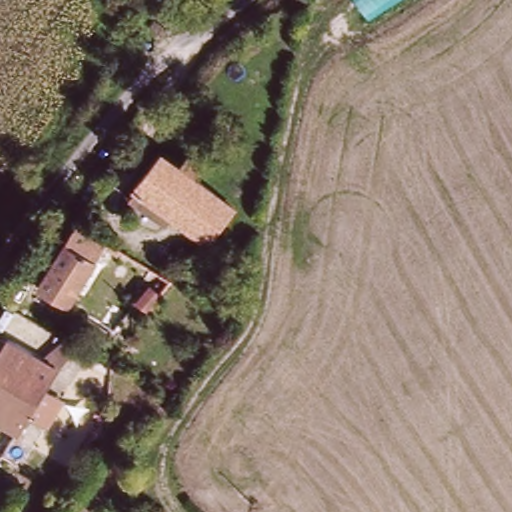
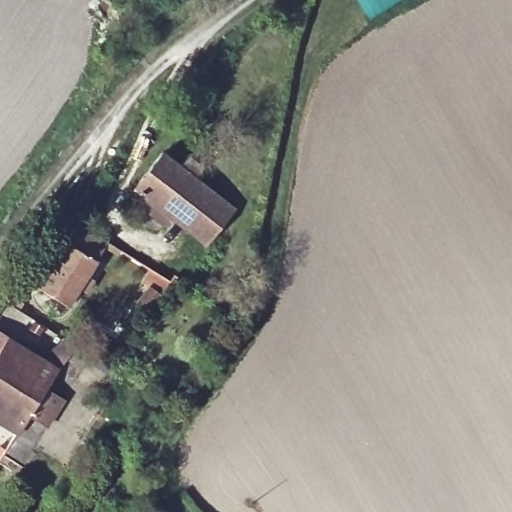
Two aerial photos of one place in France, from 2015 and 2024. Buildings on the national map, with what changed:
unchanged [(367,20),(355,0),(399,0),(367,20)]
unchanged [(159,216),(130,193),(160,157),(171,166),(181,154),(199,166),(189,181),(231,215),(202,251),(169,225),(159,216)]
unchanged [(69,241),(97,258),(64,317),(32,298),(69,241)]
unchanged [(156,309),(141,297),(151,285),(165,297),(156,309)]
unchanged [(59,365),(17,434),(0,423),(0,344),(7,332),(59,365)]

